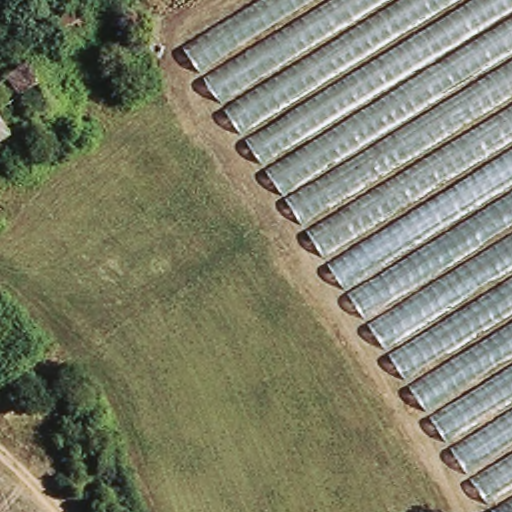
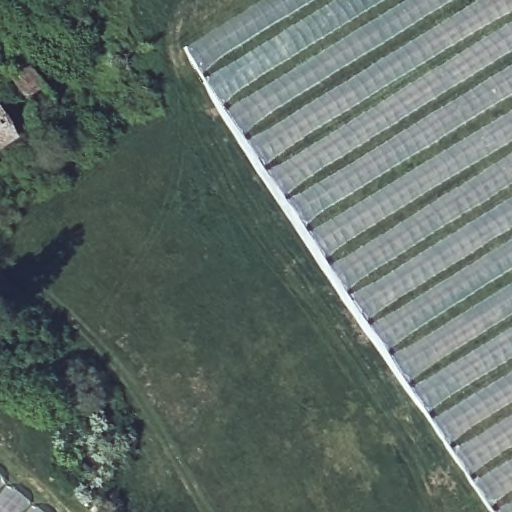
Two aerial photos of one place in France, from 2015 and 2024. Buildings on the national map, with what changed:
unchanged [(492,508),(172,32),(221,0),(512,0),(512,496),(492,508)]
unchanged [(70,47),(61,29),(82,20),(91,36),(70,47)]
unchanged [(10,91),(35,76),(59,117),(17,141),(0,151),(0,78),(3,77),(10,91)]
unchanged [(17,141),(59,117),(72,139),(31,164),(17,141)]
demolished [(0,512),(0,487),(34,512),(0,512)]

